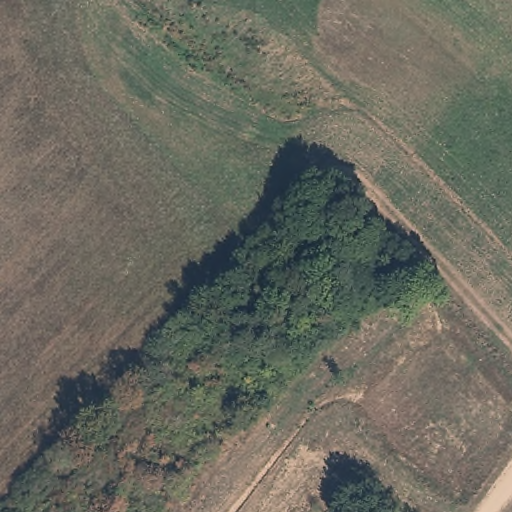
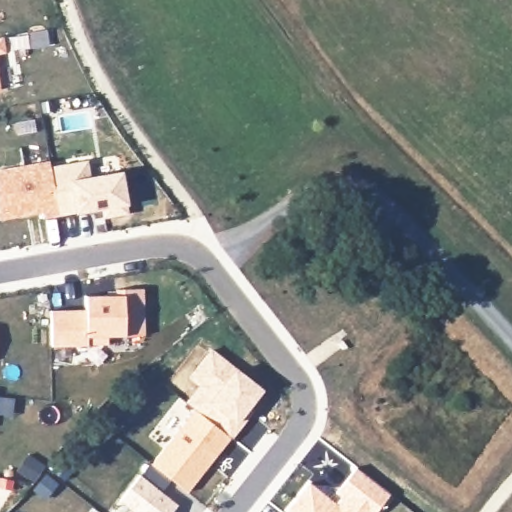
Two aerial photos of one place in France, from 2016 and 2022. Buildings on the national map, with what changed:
new [(3,37),(6,53),(0,55),(0,37),(3,37)]
new [(1,89),(0,90),(0,80),(1,89)]
new [(94,175),(122,170),(128,205),(129,214),(104,218),(102,209),(75,215),(54,218),(45,165),(88,159),(94,175)]
new [(45,165),(54,219),(39,221),(38,215),(0,222),(0,174),(45,165)]
new [(85,310),(85,296),(115,296),(115,290),(142,289),(143,335),(107,336),(107,344),(50,346),(49,311),(85,310)]
new [(150,464),(194,410),(185,403),(197,386),(187,378),(211,348),(234,367),(263,389),(248,408),(253,412),(233,440),(231,439),(187,493),(171,481),(160,493),(137,475),(149,463),(150,464)]
new [(133,472),(171,502),(164,512),(126,512),(128,509),(113,497),(133,472)]

